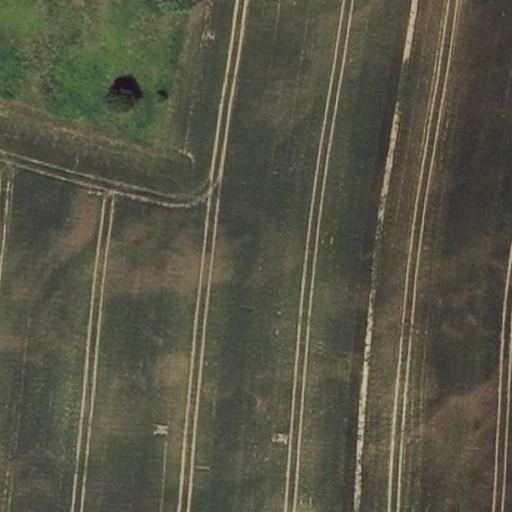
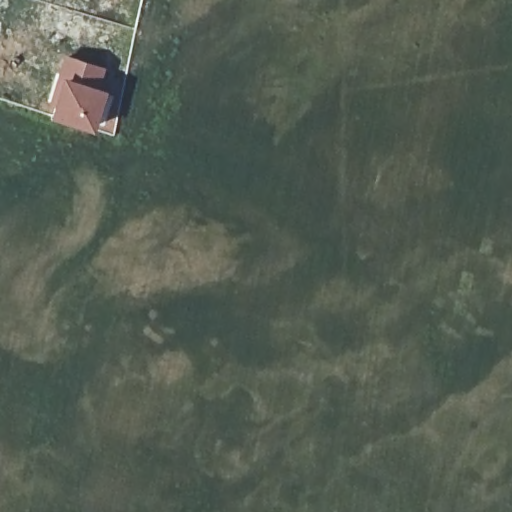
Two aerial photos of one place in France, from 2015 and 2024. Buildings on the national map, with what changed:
new [(104,68),(97,88),(106,90),(92,133),(47,119),(50,109),(47,108),(64,55),(104,68)]

